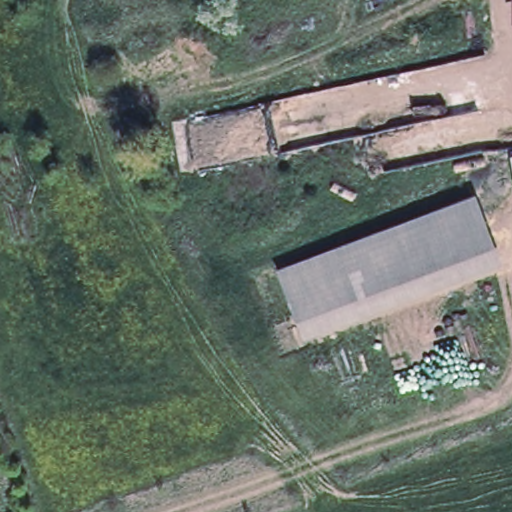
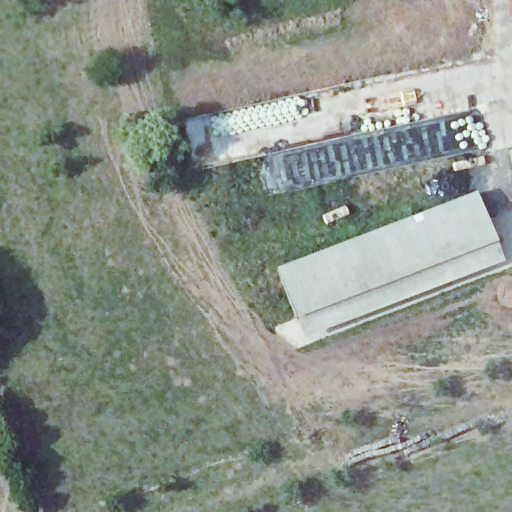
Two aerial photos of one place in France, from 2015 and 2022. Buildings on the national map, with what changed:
unchanged [(189,180),(192,195),(167,200),(165,186),(189,180)]
unchanged [(505,264),(305,333),(278,263),(480,189),(505,264)]

